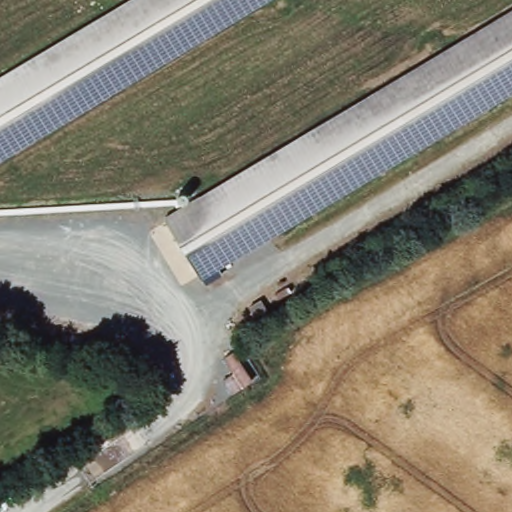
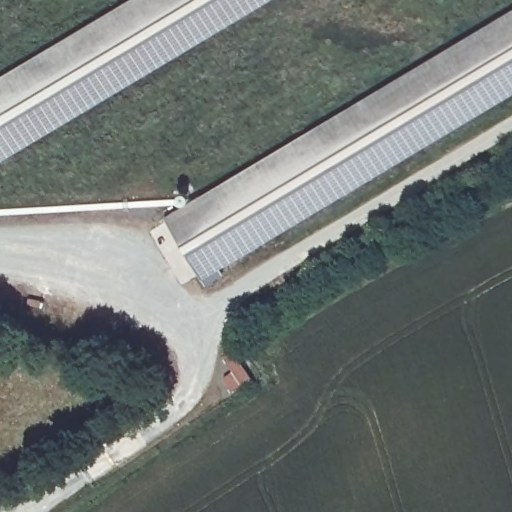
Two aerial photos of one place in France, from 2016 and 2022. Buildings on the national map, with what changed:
unchanged [(0,160),(0,82),(134,0),(259,0),(0,160)]
unchanged [(152,229),(512,11),(512,91),(190,287),(152,229)]
unchanged [(233,369),(249,398),(228,410),(212,382),(233,369)]

